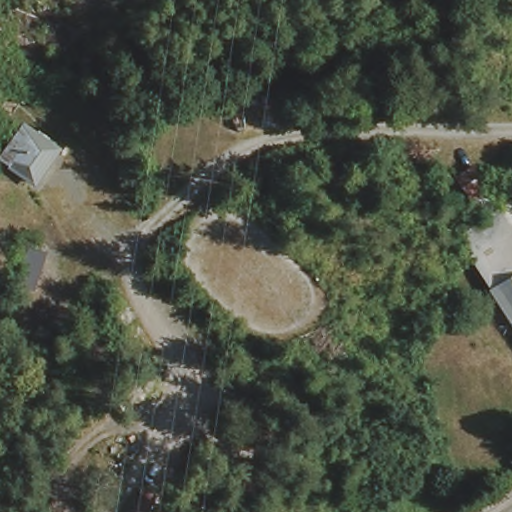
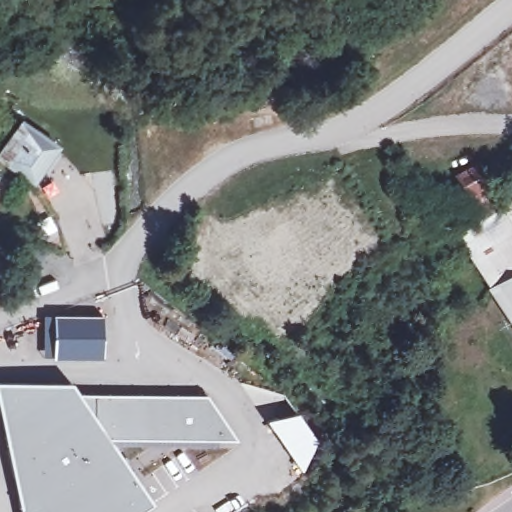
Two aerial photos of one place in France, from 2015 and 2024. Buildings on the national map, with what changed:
unchanged [(49,146),(23,178),(5,164),(31,131),(49,146)]
unchanged [(478,166),(505,223),(512,234),(512,310),(497,288),(500,286),(468,236),(484,226),(463,185),(459,175),(478,166)]
new [(103,315),(103,359),(41,358),(41,315),(103,315)]
new [(80,396),(207,397),(236,438),(106,438),(152,502),(138,512),(19,512),(0,421),(0,383),(72,385),(80,396)]
new [(296,413),(315,440),(298,469),(265,421),(296,413)]

